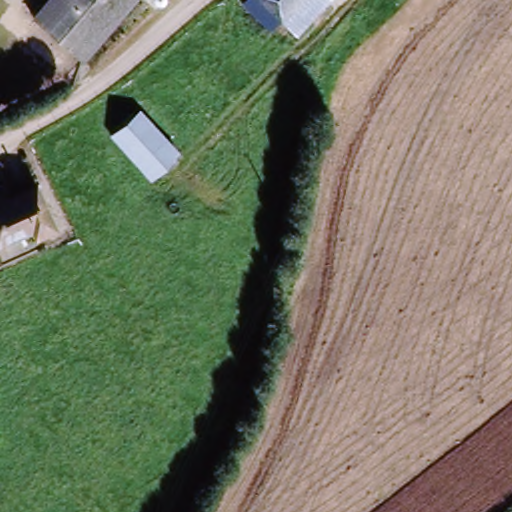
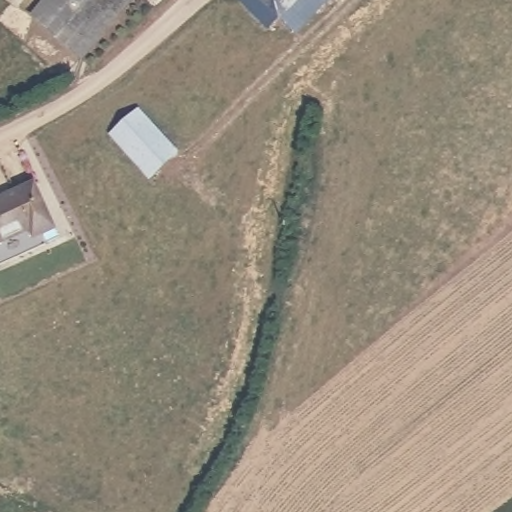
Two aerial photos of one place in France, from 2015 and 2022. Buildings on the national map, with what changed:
unchanged [(74,58),(24,8),(31,0),(130,0),(74,58)]
unchanged [(234,0),(282,0),(257,24),(234,0)]
unchanged [(257,24),(282,0),(315,0),(273,40),(257,24)]
unchanged [(155,169),(117,131),(136,112),(174,150),(155,169)]
unchanged [(26,233),(21,222),(0,234),(0,190),(29,174),(52,219),(26,233)]

